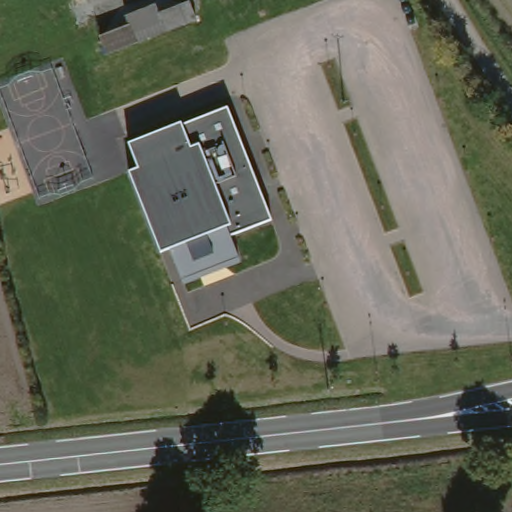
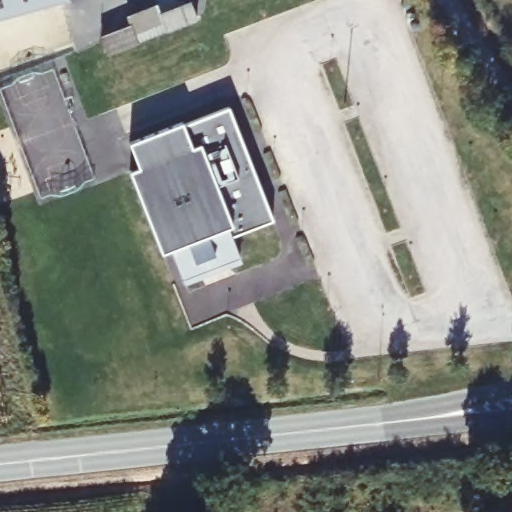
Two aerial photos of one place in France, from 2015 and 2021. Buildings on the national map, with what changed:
new [(70,2),(0,22),(0,0),(69,0),(70,2)]
unchanged [(165,11),(194,0),(197,0),(203,15),(171,27),(143,37),(113,50),(106,34),(135,22),(133,16),(163,4),(165,11)]
unchanged [(233,106),(279,219),(237,237),(247,261),(190,282),(177,248),(166,253),(133,171),(142,166),(134,141),(233,106)]

